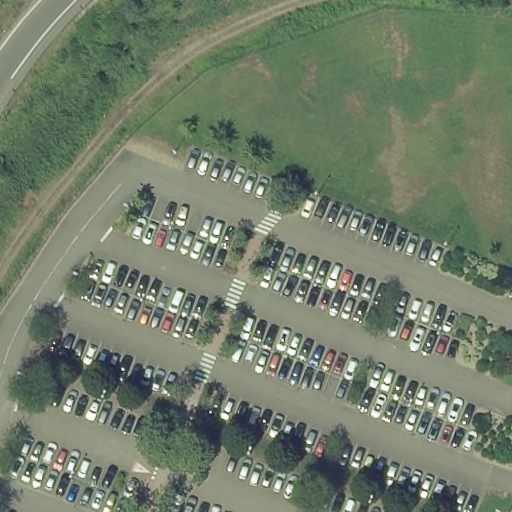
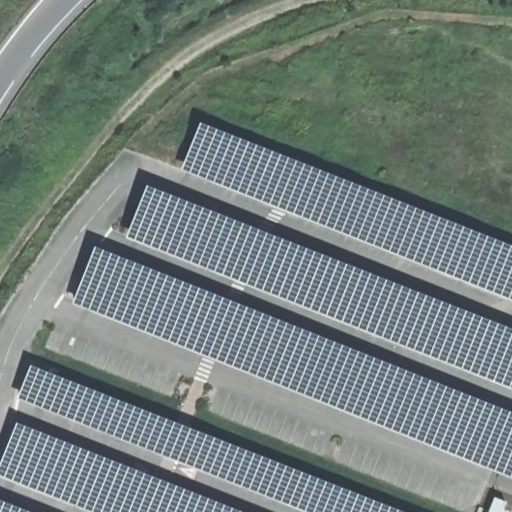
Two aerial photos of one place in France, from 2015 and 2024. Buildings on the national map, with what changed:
new [(512,247),(512,303),(180,171),(197,124),(512,247)]
new [(512,331),(512,393),(124,239),(144,187),(512,331)]
new [(512,414),(512,482),(71,307),(92,247),(512,414)]
new [(396,512),(300,512),(16,401),(28,367),(396,512)]
new [(0,480),(0,461),(14,424),(236,512),(82,512),(0,480)]
new [(0,504),(21,512),(0,512),(0,504)]

